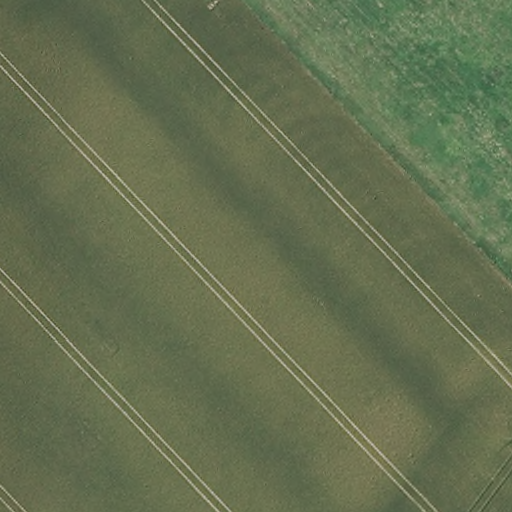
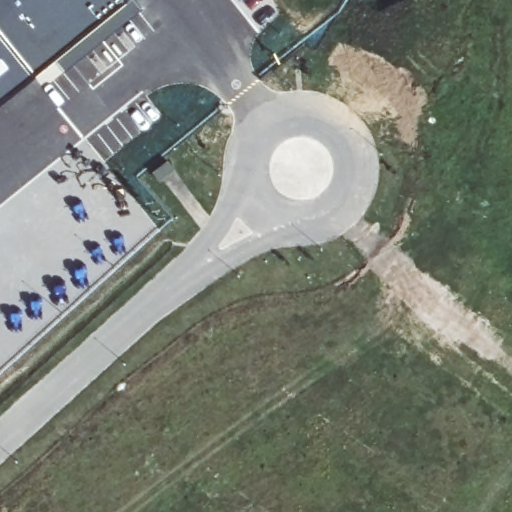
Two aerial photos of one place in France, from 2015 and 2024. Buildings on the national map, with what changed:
new [(138,12),(65,70),(57,58),(35,76),(0,104),(0,0),(128,0),(138,12)]
new [(153,172),(168,161),(174,170),(159,181),(153,172)]

